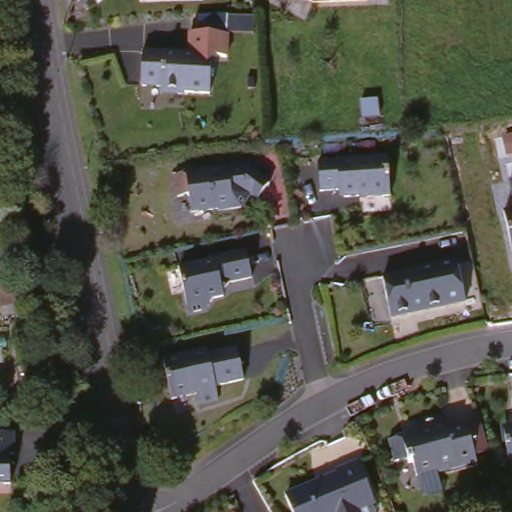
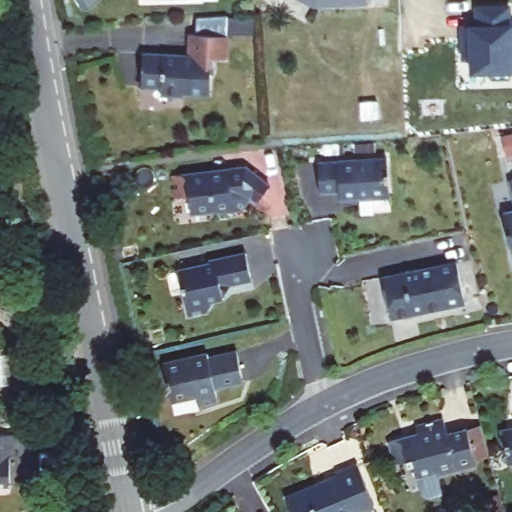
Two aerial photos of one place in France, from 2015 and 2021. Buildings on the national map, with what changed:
unchanged [(369,4),(369,11),(315,13),(291,0),(385,0),(386,3),(369,4)]
new [(471,27),(479,27),(478,9),(509,8),(509,26),(512,26),(512,71),(511,78),(493,78),(490,70),(473,70),(473,57),(464,58),(464,39),(472,38),(471,27)]
unchanged [(224,26),(224,49),(209,50),(209,86),(183,87),(183,90),(161,90),(161,83),(141,84),(140,50),(193,49),(192,27),(224,26)]
unchanged [(391,163),(389,200),(366,199),(366,198),(344,197),(338,192),(319,191),(319,160),(391,163)]
unchanged [(271,186),(257,202),(250,197),(241,208),(217,211),(214,209),(189,212),(188,194),(174,196),(171,174),(246,166),(271,186)]
unchanged [(512,180),(512,188),(511,181),(512,180)]
unchanged [(512,211),(512,250),(504,213),(512,211)]
unchanged [(246,254),(253,281),(230,286),(224,297),(224,301),(214,303),(207,315),(189,320),(178,273),(209,266),(208,263),(246,254)]
unchanged [(469,306),(394,317),(388,277),(463,266),(469,306)]
unchanged [(236,351),(242,382),(213,387),(215,401),(195,405),(193,395),(168,400),(161,360),(206,352),(207,356),(236,351)]
unchanged [(427,500),(421,496),(418,479),(416,479),(413,466),(410,466),(409,462),(394,465),(389,442),(415,437),(418,432),(417,428),(445,421),(449,437),(469,432),(484,429),(491,458),(476,462),(477,469),(438,478),(442,497),(427,500)]
unchanged [(505,435),(512,434),(512,464),(509,464),(505,435)]
unchanged [(0,487),(0,435),(17,435),(18,459),(12,459),(12,487),(0,487)]
unchanged [(373,506),(356,512),(289,512),(284,498),(336,478),(334,474),(357,465),(373,506)]

